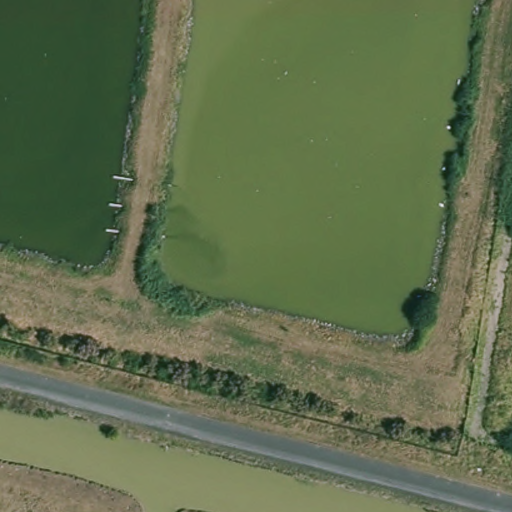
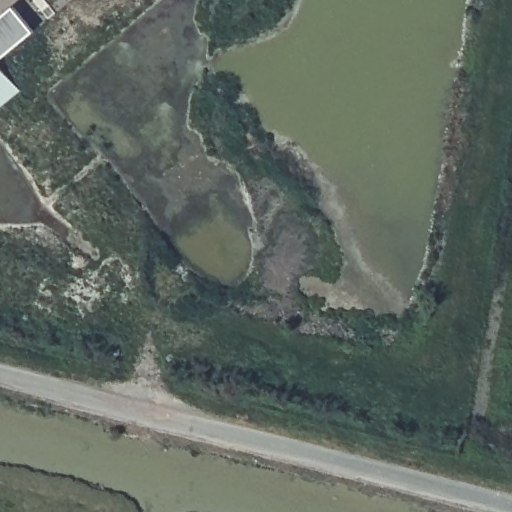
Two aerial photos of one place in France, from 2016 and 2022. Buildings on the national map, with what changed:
new [(12,8),(34,35),(0,64),(0,18),(12,8)]
new [(18,97),(0,112),(0,75),(18,97)]

